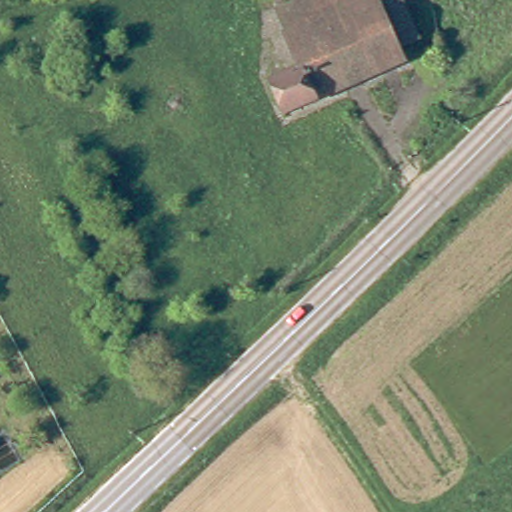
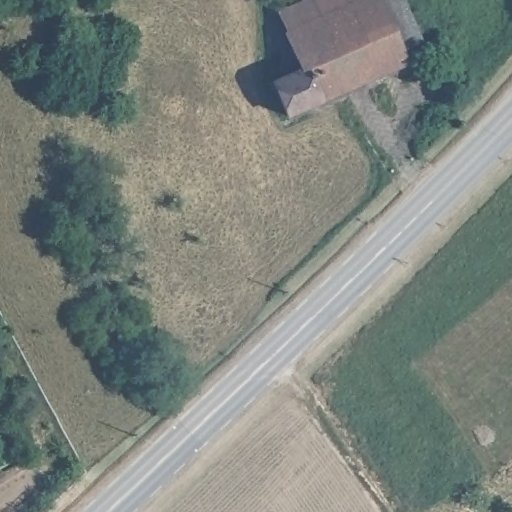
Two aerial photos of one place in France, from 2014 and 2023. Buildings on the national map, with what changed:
unchanged [(410,62),(292,115),(278,82),(308,69),(292,31),(295,30),(285,12),(313,0),(321,0),(328,15),(365,0),(383,0),(405,49),(410,62)]
unchanged [(328,15),(321,0),(365,0),(328,15)]
unchanged [(423,39),(405,49),(383,0),(406,0),(423,39)]

